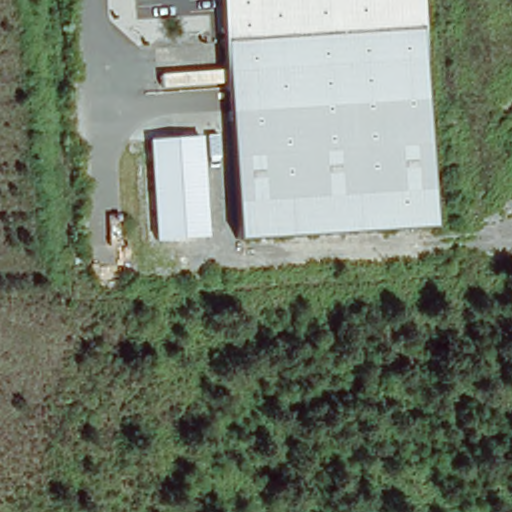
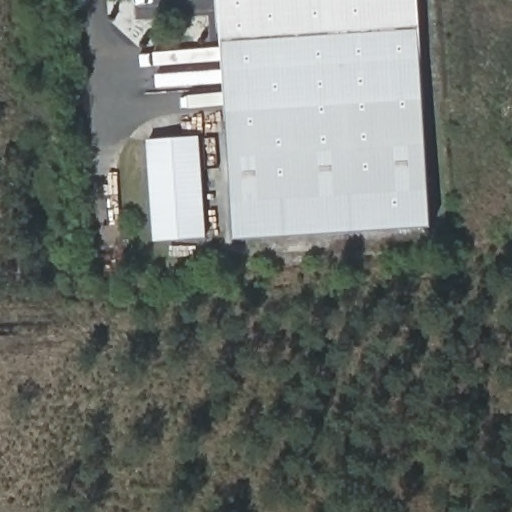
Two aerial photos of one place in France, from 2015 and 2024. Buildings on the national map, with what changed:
unchanged [(430,224),(232,236),(218,0),(416,0),(430,224)]
unchanged [(207,237),(154,241),(147,140),(200,136),(207,237)]

